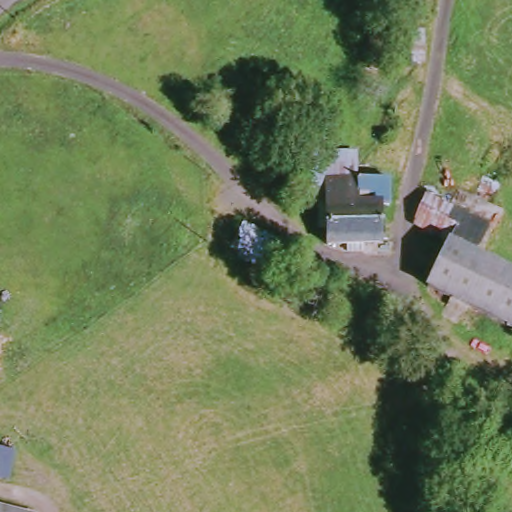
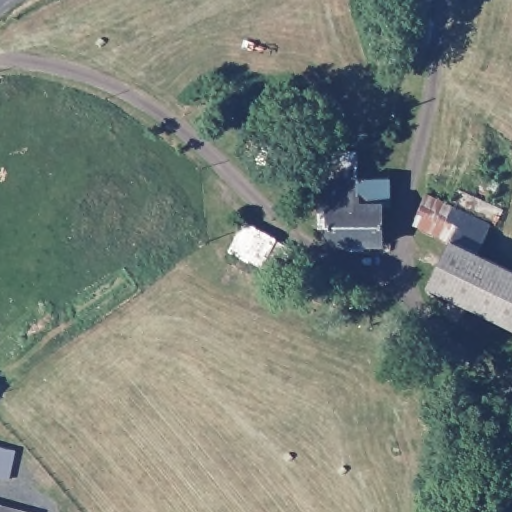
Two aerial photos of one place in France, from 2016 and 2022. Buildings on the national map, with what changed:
unchanged [(432,68),(404,69),(404,0),(431,0),(432,68)]
unchanged [(364,156),(365,174),(399,172),(396,205),(389,209),(391,244),(331,245),(332,219),(332,202),(308,206),(310,156),(364,156)]
unchanged [(482,258),(512,272),(512,331),(476,315),(469,327),(452,318),(458,305),(430,292),(452,245),(419,229),(434,200),(495,231),(482,258)]
unchanged [(291,250),(278,277),(224,250),(239,223),(270,239),(291,250)]
unchanged [(25,448),(18,483),(0,480),(0,443),(25,448)]
unchanged [(36,512),(0,512),(0,504),(36,512)]

